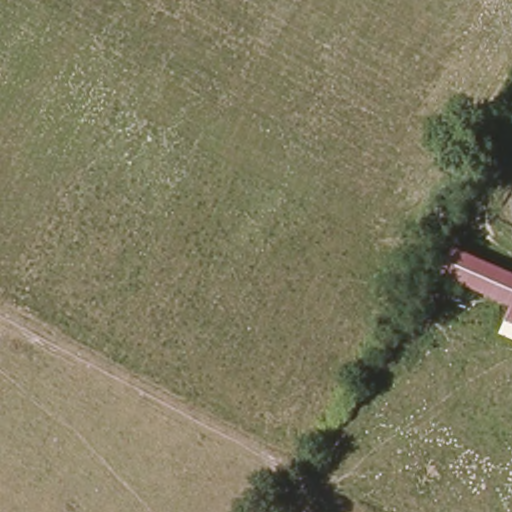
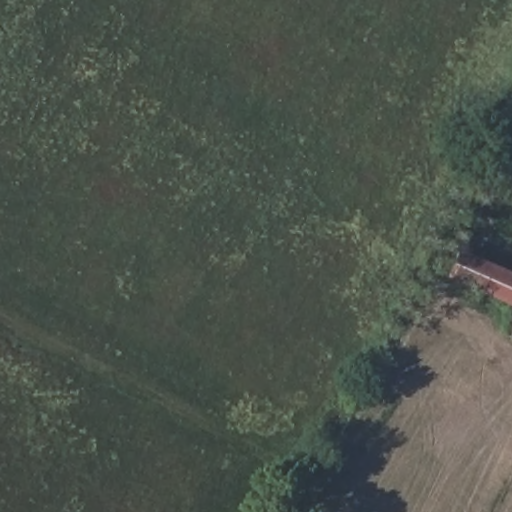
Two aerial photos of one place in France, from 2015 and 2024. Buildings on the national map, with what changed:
unchanged [(454,274),(464,251),(512,273),(512,299),(454,274)]

